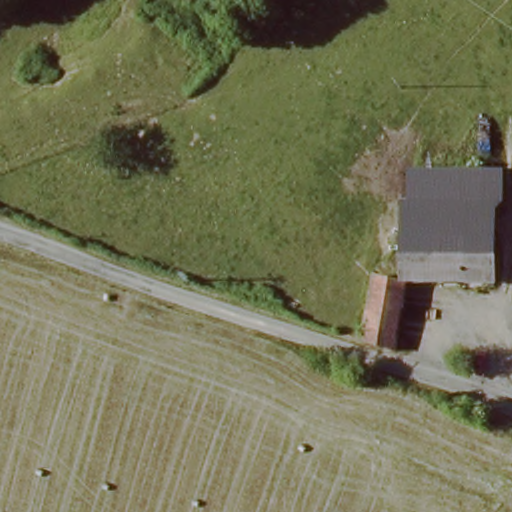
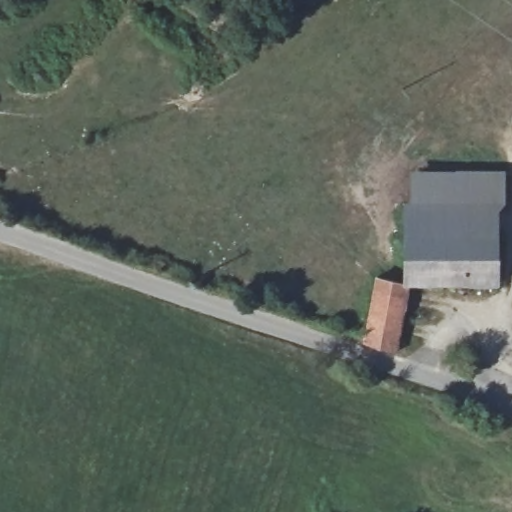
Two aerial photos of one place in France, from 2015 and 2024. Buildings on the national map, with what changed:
unchanged [(409,202),(465,203),(464,170),(498,172),(498,233),(409,231),(409,202)]
unchanged [(498,280),(408,277),(409,231),(498,233),(498,280)]
unchanged [(372,279),(402,293),(384,350),(356,347),(372,279)]

